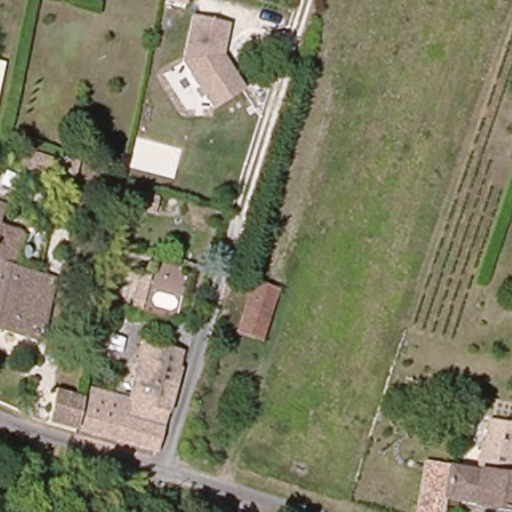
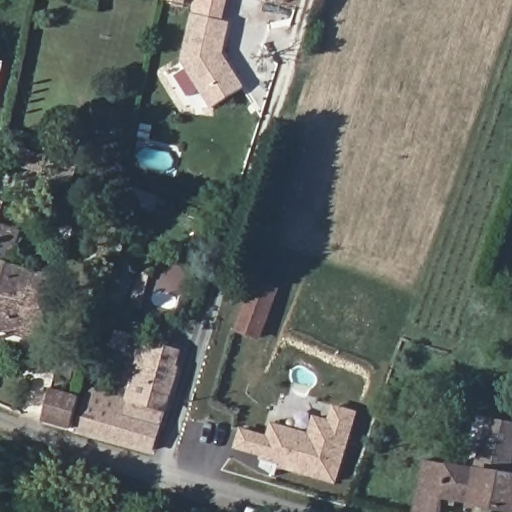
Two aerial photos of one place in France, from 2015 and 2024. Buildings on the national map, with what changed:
unchanged [(211,111),(181,65),(193,14),(231,23),(225,55),(245,88),(211,111)]
unchanged [(3,72),(0,85),(0,58),(6,60),(3,72)]
unchanged [(20,227),(9,263),(30,269),(21,300),(0,294),(0,222),(20,227)]
unchanged [(46,273),(60,277),(53,300),(40,342),(0,331),(0,294),(21,300),(30,269),(46,273)]
unchanged [(282,290),(265,340),(240,332),(258,282),(282,290)]
unchanged [(175,426),(166,424),(159,452),(82,430),(95,387),(134,398),(149,341),(184,350),(185,342),(200,345),(201,346),(195,371),(191,370),(181,367),(170,410),(179,412),(175,426)]
unchanged [(47,422),(56,390),(89,397),(82,430),(47,422)]
new [(240,427),(267,435),(270,422),(308,432),(313,415),(328,419),(332,404),(357,412),(336,485),(278,468),(275,476),(261,467),(262,461),(260,458),(260,456),(234,448),(240,427)]
demolished [(423,418),(412,417),(414,404),(425,405),(423,418)]
unchanged [(446,512),(418,512),(423,457),(480,466),(486,416),(512,419),(512,505),(447,497),(446,512)]

